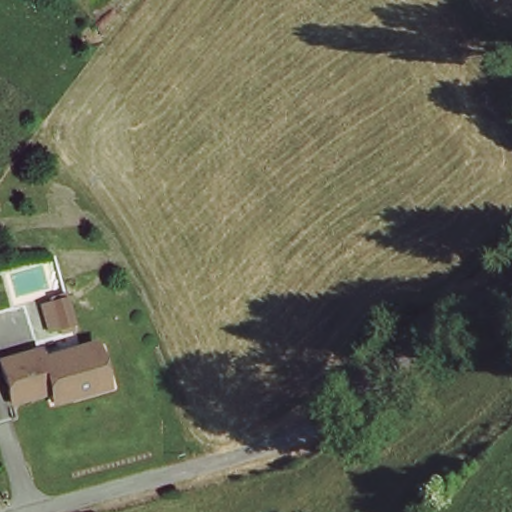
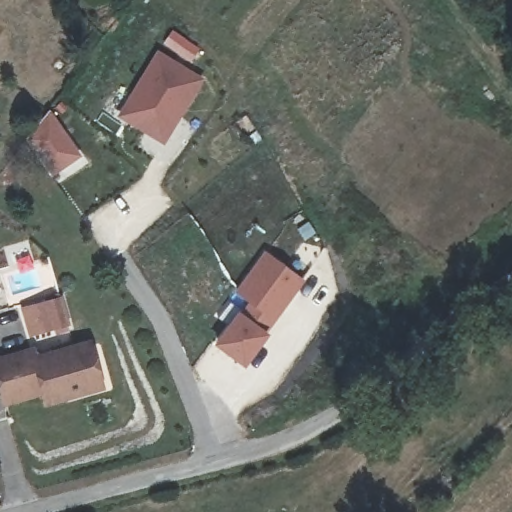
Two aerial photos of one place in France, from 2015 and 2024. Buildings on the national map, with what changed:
new [(118,116),(158,51),(204,80),(163,144),(118,116)]
new [(51,176),(25,139),(48,111),(80,156),(51,176)]
new [(263,330),(269,335),(244,367),(214,342),(239,312),(248,302),(235,291),(265,252),(306,281),(263,330)]
unchanged [(62,295),(70,322),(43,330),(35,302),(62,295)]
unchanged [(0,365),(35,356),(38,364),(92,350),(102,390),(66,399),(66,404),(48,409),(45,397),(6,408),(0,385),(0,365)]

